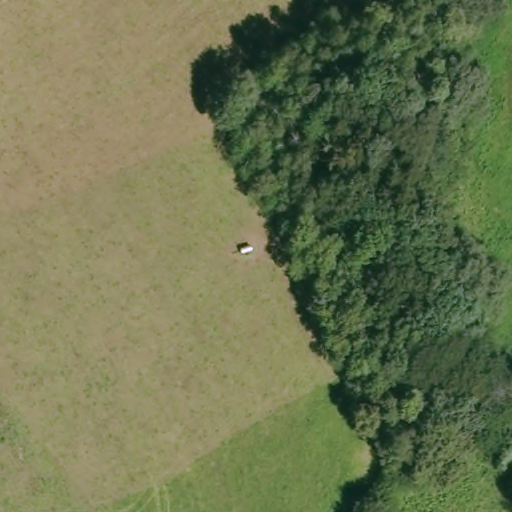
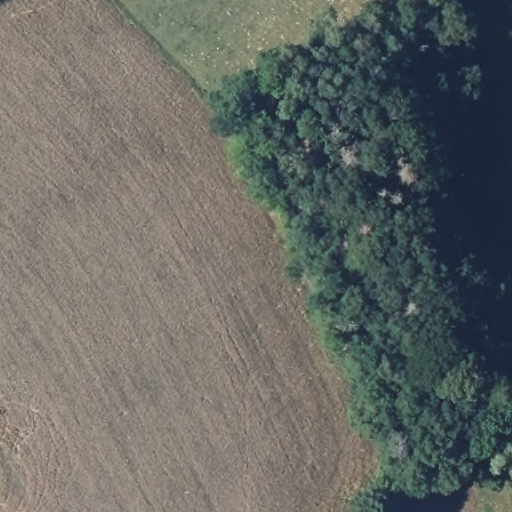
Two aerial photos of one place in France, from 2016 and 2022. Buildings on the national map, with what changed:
[]

